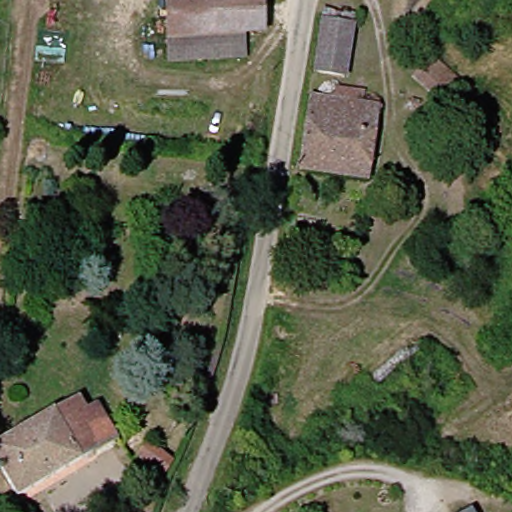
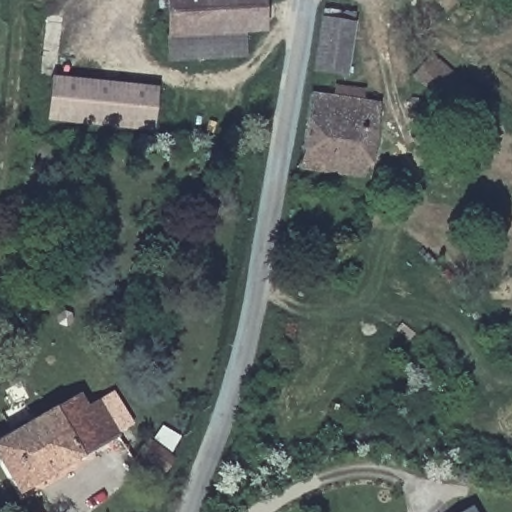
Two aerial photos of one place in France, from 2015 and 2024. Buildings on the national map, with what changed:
unchanged [(270,31),(240,32),(240,57),(167,55),(166,0),(270,0),(270,31)]
unchanged [(363,29),(355,71),(320,65),(326,23),(363,29)]
unchanged [(418,80),(443,61),(473,98),(451,122),(432,97),(418,80)]
new [(55,76),(161,85),(158,129),(51,120),(55,76)]
unchanged [(356,115),(358,106),(384,112),(371,186),(298,175),(309,104),(356,115)]
unchanged [(106,430),(116,425),(124,440),(21,501),(0,466),(0,447),(74,401),(83,416),(95,410),(106,430)]
unchanged [(173,460),(164,477),(136,458),(147,441),(173,460)]
unchanged [(473,512),(478,510),(478,512),(473,512)]

